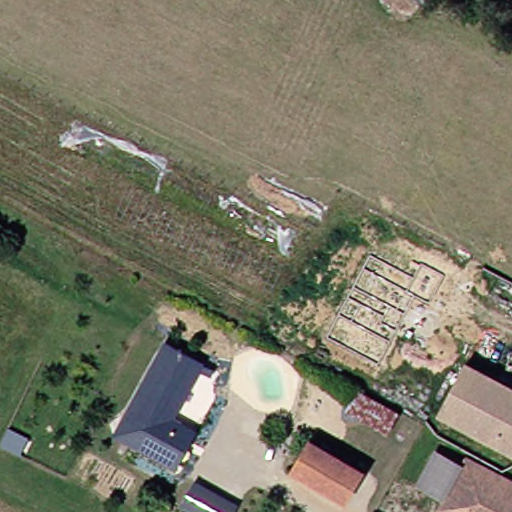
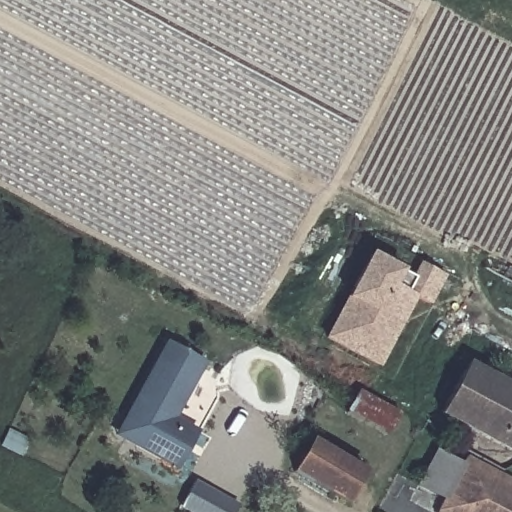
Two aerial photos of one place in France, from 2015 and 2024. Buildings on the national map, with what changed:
new [(326,337),(370,256),(413,278),(420,264),(444,275),(428,303),(414,297),(378,366),(326,337)]
demolished [(436,350),(395,326),(386,337),(377,331),(403,285),(455,315),(436,350)]
unchanged [(162,336),(201,356),(167,424),(175,427),(157,460),(130,446),(110,436),(120,417),(162,336)]
unchanged [(463,365),(512,391),(512,456),(436,416),(463,365)]
unchanged [(439,492),(412,479),(435,435),(462,450),(460,453),(439,492)]
unchanged [(303,443),(352,471),(335,501),(287,472),(303,443)]
unchanged [(512,512),(432,512),(430,511),(439,492),(460,453),(512,481),(512,512)]
new [(236,507),(233,512),(185,512),(177,508),(191,482),(236,507)]

